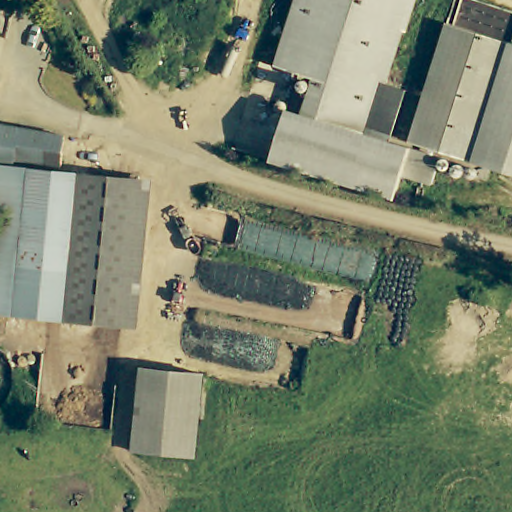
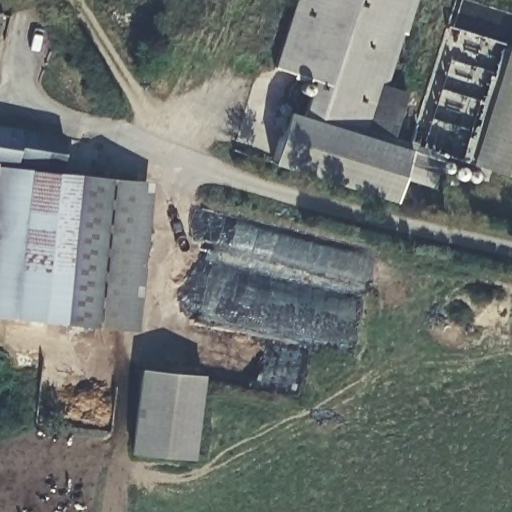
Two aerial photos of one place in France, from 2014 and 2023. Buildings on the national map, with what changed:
unchanged [(316,78),(276,66),(296,0),(416,0),(406,32),(403,31),(373,131),(306,111),(316,78)]
unchanged [(512,42),(512,46),(477,163),(412,143),(449,23),(478,32),(512,42)]
unchanged [(512,46),(512,173),(477,163),(512,46)]
unchanged [(373,131),(412,143),(411,148),(419,150),(411,176),(381,167),(374,191),(357,186),(275,163),(291,107),(306,111),(373,131)]
unchanged [(29,317),(0,314),(0,126),(76,139),(77,140),(75,173),(151,180),(150,183),(132,327),(29,317)]
unchanged [(136,386),(137,366),(197,371),(194,407),(193,415),(190,454),(183,454),(130,449),(136,386)]

